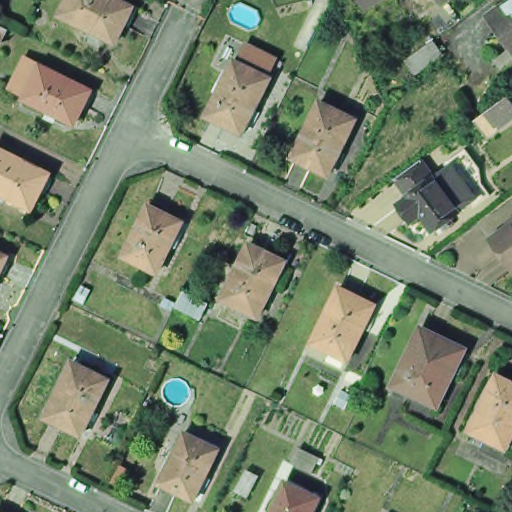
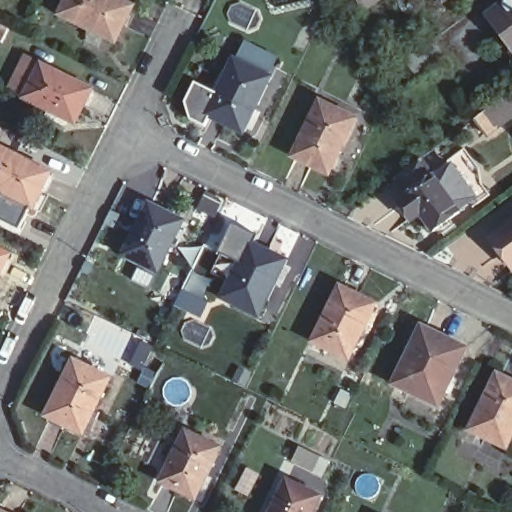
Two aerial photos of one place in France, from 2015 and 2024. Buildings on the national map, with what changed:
unchanged [(63,0),(119,0),(129,5),(112,40),(56,12),(63,0)]
unchanged [(358,0),(379,0),(365,11),(358,0)]
unchanged [(491,10),(505,0),(512,0),(512,39),(491,10)]
unchanged [(0,40),(0,23),(8,27),(2,41),(0,40)]
unchanged [(446,58),(419,78),(406,60),(433,40),(446,58)]
unchanged [(48,109),(51,103),(26,90),(27,88),(13,81),(27,51),(41,58),(42,57),(93,82),(76,116),(59,107),(56,113),(48,109)]
unchanged [(267,75),(239,131),(204,113),(231,57),(267,75)]
unchanged [(474,119),(507,95),(512,104),(512,115),(486,134),(474,119)]
unchanged [(322,100),(358,117),(330,174),(294,156),(322,100)]
unchanged [(34,206),(0,189),(0,144),(52,170),(34,206)]
unchanged [(404,200),(403,198),(390,182),(408,169),(417,163),(429,179),(429,180),(447,168),(472,201),(454,214),(455,215),(429,234),(417,217),(409,223),(406,225),(393,207),(404,200)]
unchanged [(187,220),(161,271),(125,253),(151,202),(187,220)]
unchanged [(492,242),(512,227),(512,269),(492,242)]
unchanged [(223,296),(251,240),(286,258),(259,314),(223,296)]
unchanged [(0,245),(5,248),(0,259),(0,245)]
unchanged [(371,297),(344,353),(308,336),(336,280),(371,297)]
unchanged [(186,288),(211,300),(203,317),(178,305),(186,288)]
unchanged [(419,325),(464,347),(437,403),(392,382),(419,325)]
unchanged [(48,409),(76,354),(112,372),(85,427),(48,409)]
unchanged [(495,374),(512,382),(512,432),(505,447),(468,429),(495,374)]
unchanged [(188,433),(223,449),(198,501),(163,484),(188,433)]
unchanged [(316,469),(301,462),(295,459),(303,444),(308,447),(324,454),(316,469)]
unchanged [(314,512),(273,512),(289,478),(323,494),(314,512)]
unchanged [(0,512),(0,510),(4,512),(0,512)]

